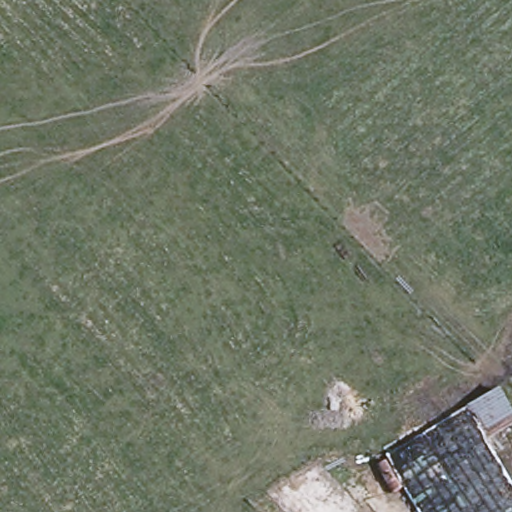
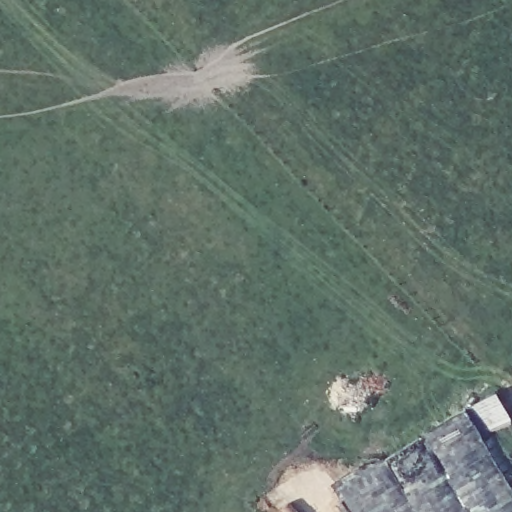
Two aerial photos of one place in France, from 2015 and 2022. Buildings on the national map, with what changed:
unchanged [(490,392),(512,424),(512,494),(463,414),(490,392)]

